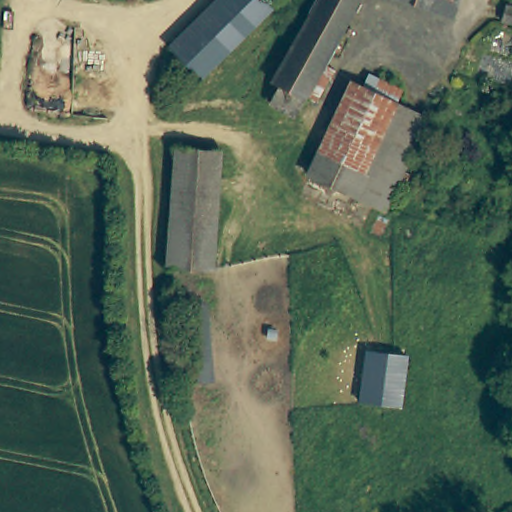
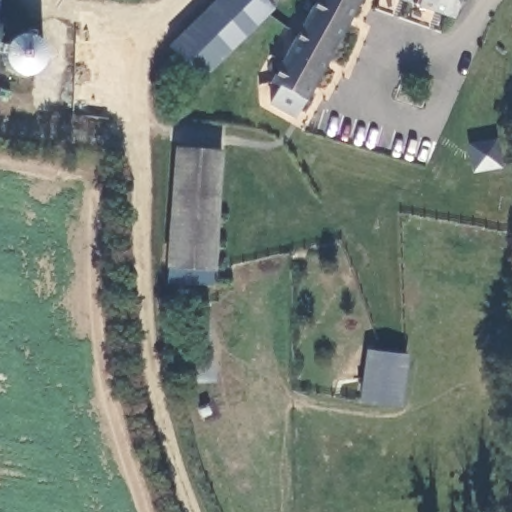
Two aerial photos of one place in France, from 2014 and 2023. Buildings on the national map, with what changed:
unchanged [(216,0),(265,0),(275,9),(204,79),(167,47),(216,0)]
unchanged [(289,120),(264,107),(275,87),(266,82),(311,0),(353,0),(289,120)]
unchanged [(444,17),(398,0),(450,0),(444,17)]
new [(13,71),(6,66),(4,60),(4,52),(7,44),(14,37),(24,34),(34,35),(39,40),(45,51),(44,62),(38,70),(31,75),(20,75),(13,71)]
demolished [(303,166),(354,74),(375,85),(397,97),(427,113),(386,192),(379,206),(352,192),(303,166)]
unchanged [(209,258),(166,256),(168,197),(173,146),(216,147),(212,197),(209,258)]
unchanged [(186,385),(175,306),(213,301),(226,381),(186,385)]
unchanged [(368,350),(408,356),(401,408),(359,403),(368,350)]

